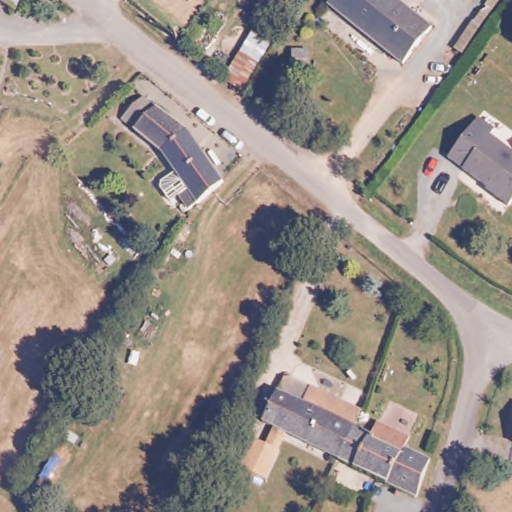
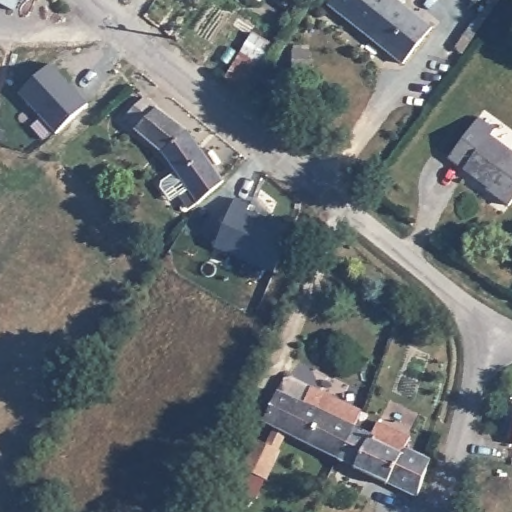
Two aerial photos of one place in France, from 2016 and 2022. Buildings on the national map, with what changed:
unchanged [(7,1),(5,0),(7,0),(7,1)]
unchanged [(415,70),(342,9),(349,0),(403,0),(445,35),(415,70)]
unchanged [(224,81),(253,31),(268,41),(273,44),(243,92),(237,89),(224,81)]
new [(20,92),(50,65),(87,105),(56,132),(20,92)]
unchanged [(195,208),(185,194),(177,199),(167,186),(169,180),(181,171),(166,150),(172,144),(149,126),(147,129),(132,117),(153,96),(193,126),(197,131),(229,177),(195,208)]
unchanged [(496,191),(452,156),(483,117),(497,127),(491,135),(512,152),(512,203),(509,207),(493,194),(496,191)]
new [(232,198),(247,205),(245,211),(289,230),(270,273),(211,247),(232,198)]
unchanged [(355,426),(341,460),(335,457),(287,437),(270,481),(247,472),(257,444),(269,448),(276,432),(265,428),(277,396),(282,384),(288,382),(361,410),(355,426)]
unchanged [(431,472),(426,470),(416,492),(341,460),(355,426),(374,432),(378,421),(411,435),(407,444),(435,457),(431,472)]

